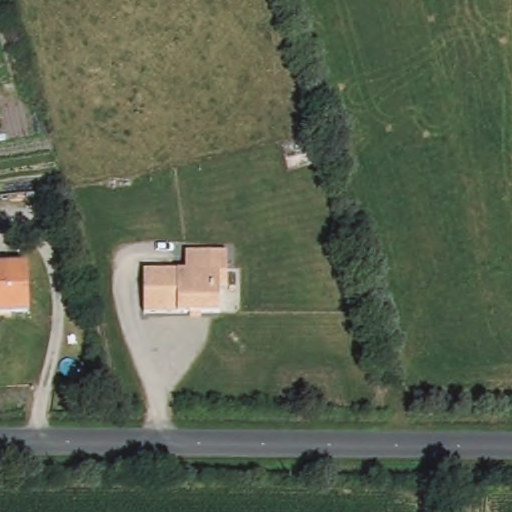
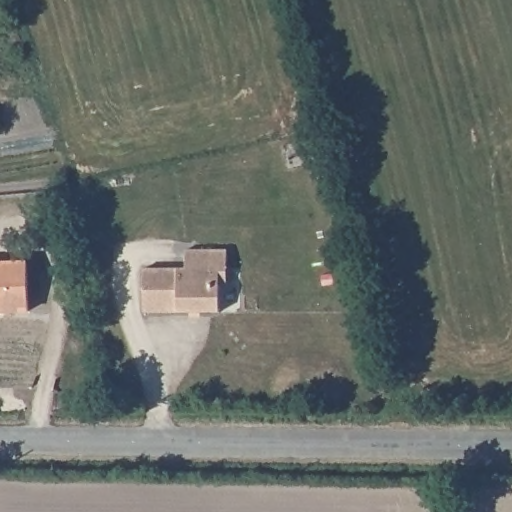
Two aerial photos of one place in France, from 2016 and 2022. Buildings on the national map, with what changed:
unchanged [(187,266),(187,245),(229,246),(230,273),(224,274),(225,307),(146,309),(145,264),(187,266)]
unchanged [(30,316),(0,317),(0,268),(29,267),(30,316)]

